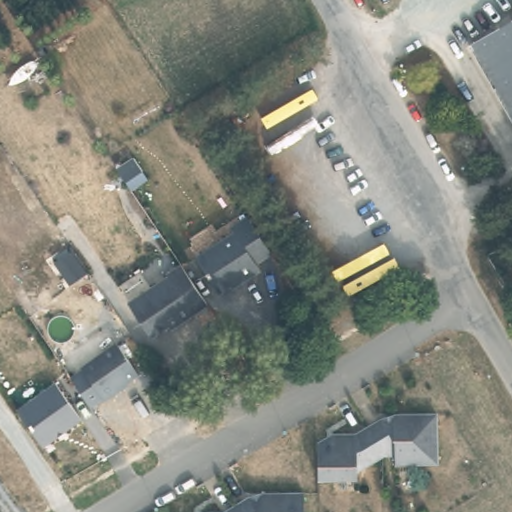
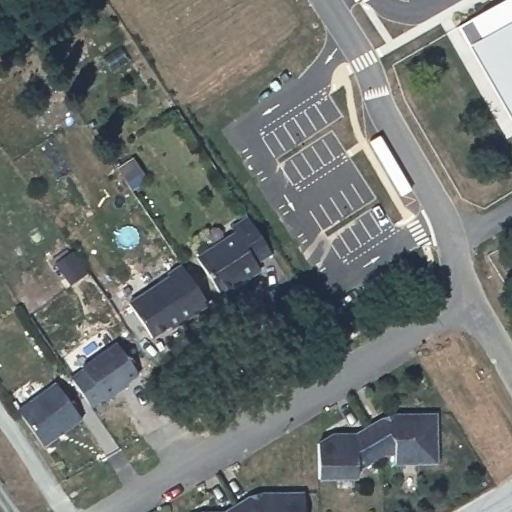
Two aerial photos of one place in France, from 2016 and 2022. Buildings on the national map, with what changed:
unchanged [(512,118),(470,45),(512,22),(512,118)]
unchanged [(232,233),(227,225),(244,215),(269,254),(254,264),(255,272),(238,282),(234,279),(214,291),(194,257),(232,233)]
unchanged [(180,324),(177,321),(152,338),(129,304),(169,277),(167,275),(182,266),(209,305),(180,324)]
unchanged [(84,371),(82,369),(118,344),(140,375),(119,389),(121,391),(105,402),(104,400),(92,408),(74,383),(72,380),(84,371)]
unchanged [(21,417),(18,413),(56,385),(82,421),(45,449),(21,417)]
unchanged [(357,428),(370,421),(393,412),(435,414),(433,463),(393,462),(394,455),(382,455),(358,464),(358,470),(318,470),(319,437),(332,437),(332,428),(357,428)]
unchanged [(255,493),(303,494),(303,512),(202,512),(202,509),(229,508),(237,502),(255,493)]

